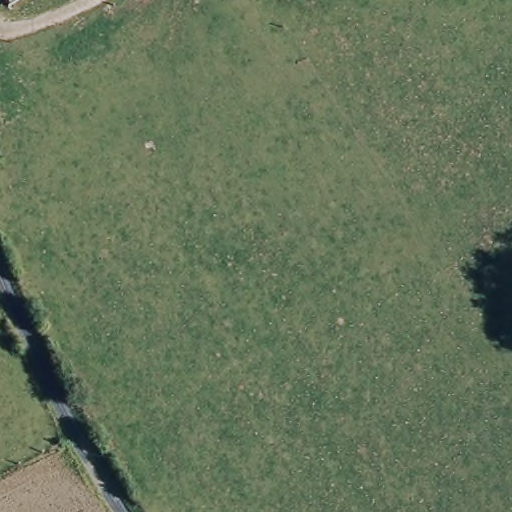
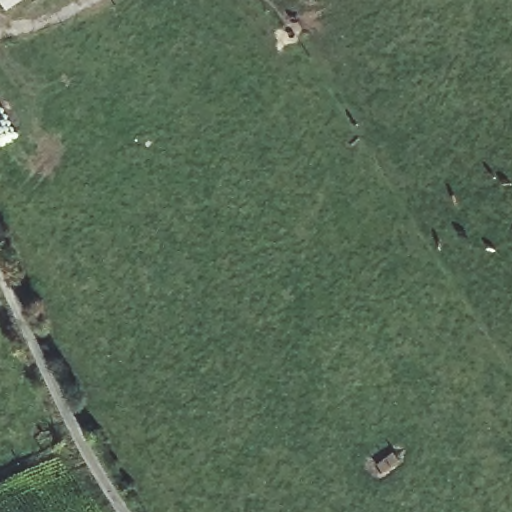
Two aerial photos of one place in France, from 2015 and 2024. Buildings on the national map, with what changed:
unchanged [(16,0),(23,0),(19,4),(16,0)]

